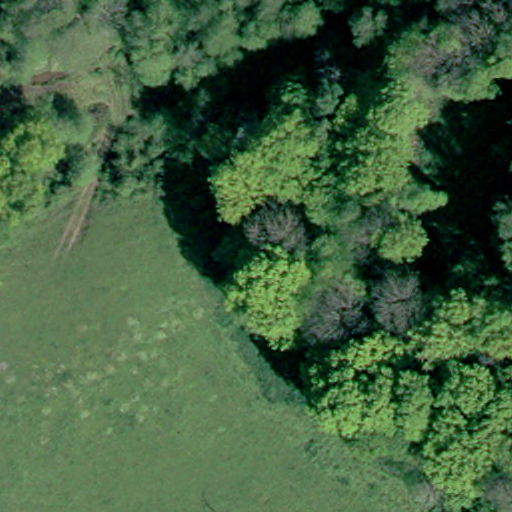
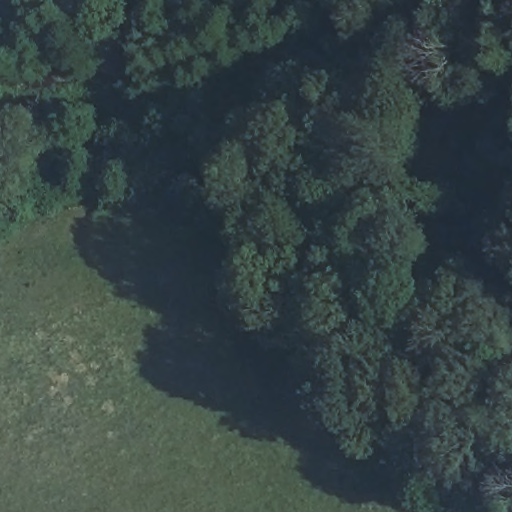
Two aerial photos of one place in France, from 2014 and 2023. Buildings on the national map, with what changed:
[]

